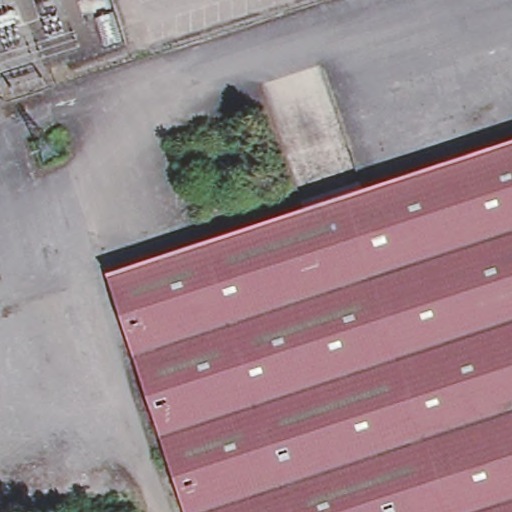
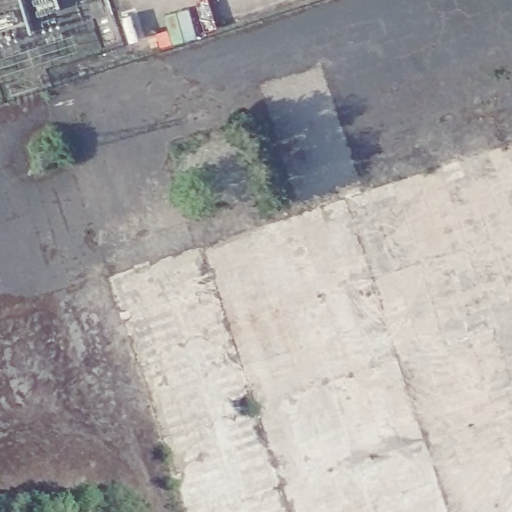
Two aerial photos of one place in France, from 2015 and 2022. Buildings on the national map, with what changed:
demolished [(512,145),(512,512),(184,512),(107,277),(512,145)]

